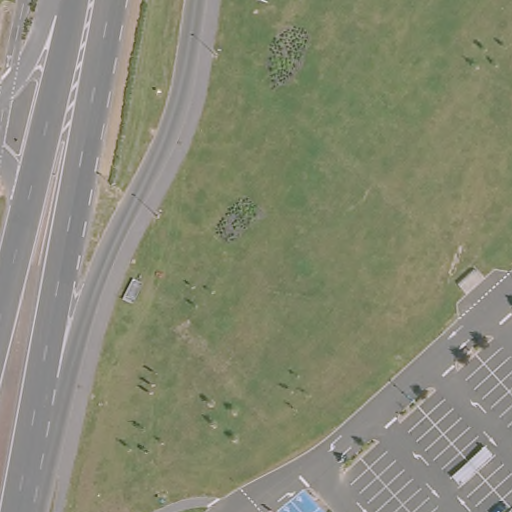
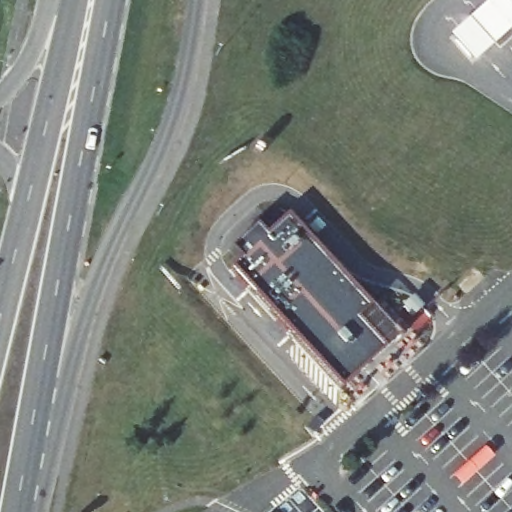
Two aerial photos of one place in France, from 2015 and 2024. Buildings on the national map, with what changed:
new [(450,35),(491,0),(512,0),(512,30),(475,63),(450,35)]
new [(242,258),(230,247),(266,215),(277,226),(287,217),(367,307),(399,336),(340,390),(230,269),(242,258)]
demolished [(279,512),(280,510),(282,512),(279,512)]

